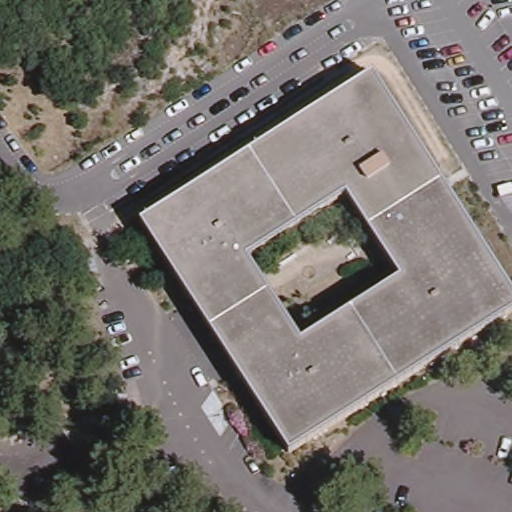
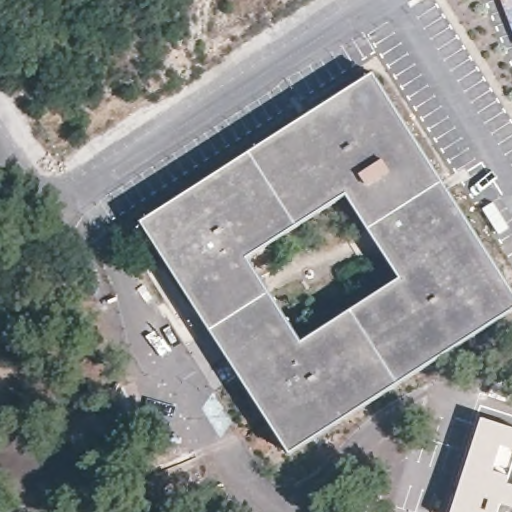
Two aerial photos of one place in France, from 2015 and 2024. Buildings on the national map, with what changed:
unchanged [(377,65),(505,266),(512,278),(512,309),(295,448),(172,260),(144,215),(377,65)]
new [(487,415),(512,423),(512,446),(507,444),(499,468),(512,473),(512,477),(512,478),(512,479),(512,501),(505,499),(500,512),(456,512),(487,416),(487,415)]

